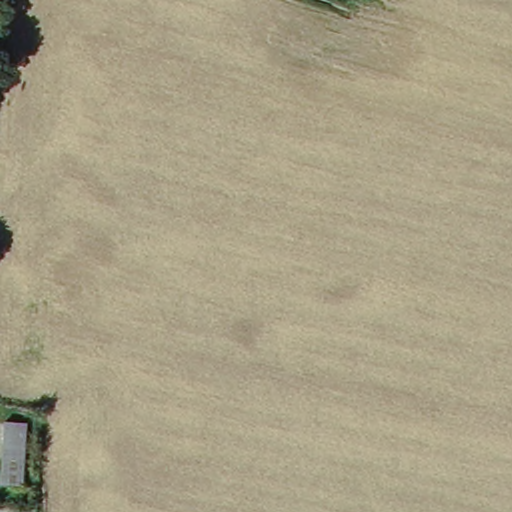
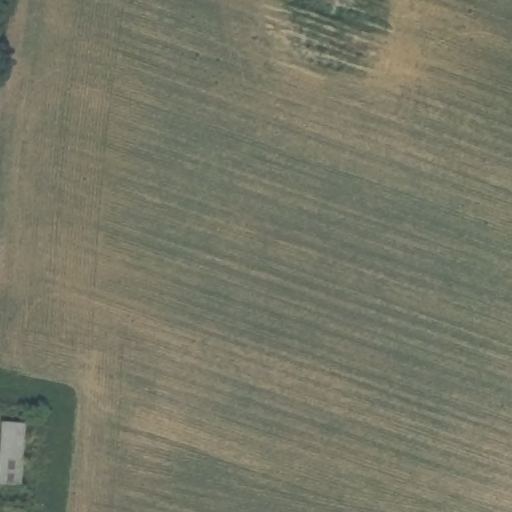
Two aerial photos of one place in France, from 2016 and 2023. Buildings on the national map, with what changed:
unchanged [(27,426),(20,486),(0,484),(7,424),(27,426)]

